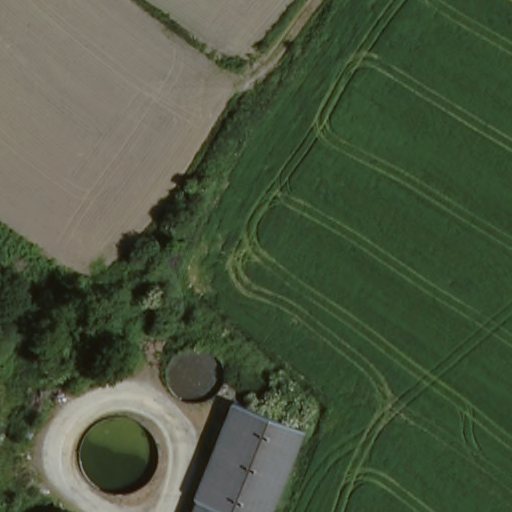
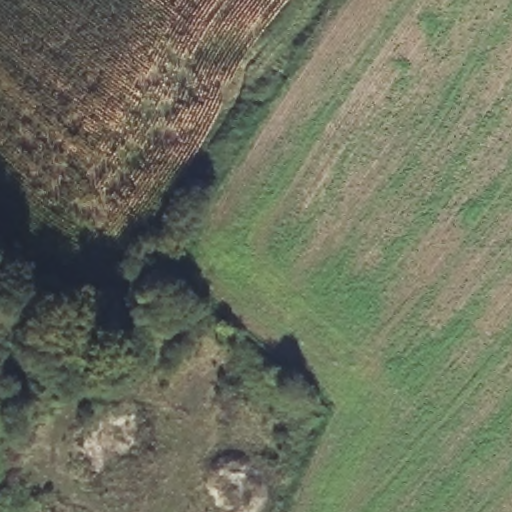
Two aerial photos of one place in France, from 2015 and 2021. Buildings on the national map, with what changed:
demolished [(232,390),(311,419),(276,509),(231,444),(217,428),(232,390)]
demolished [(200,489),(193,487),(207,452),(217,428),(231,444),(276,509),(275,512),(191,512),(200,489)]

